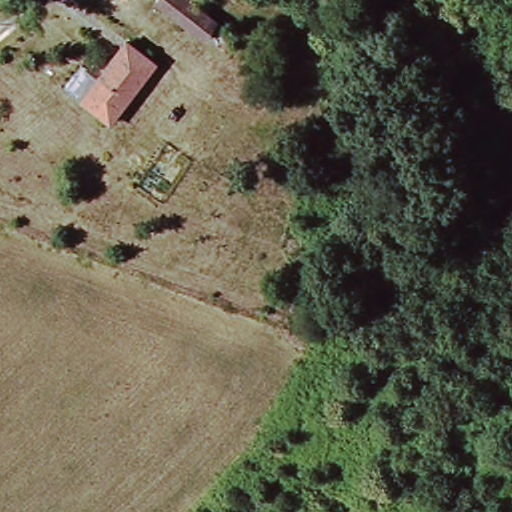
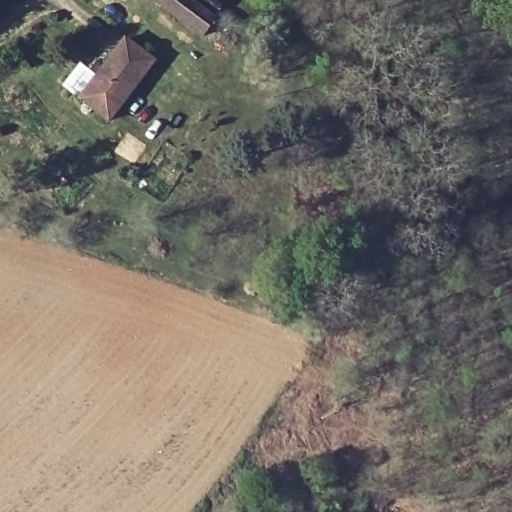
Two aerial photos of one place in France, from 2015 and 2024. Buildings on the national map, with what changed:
unchanged [(209,30),(164,0),(197,0),(220,15),(209,30)]
unchanged [(118,118),(88,98),(126,40),(156,60),(118,118)]

